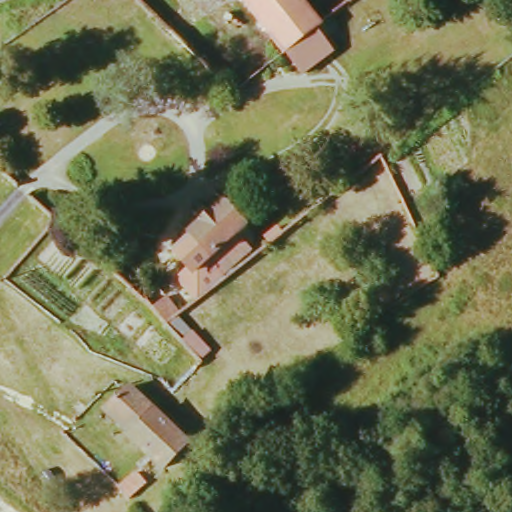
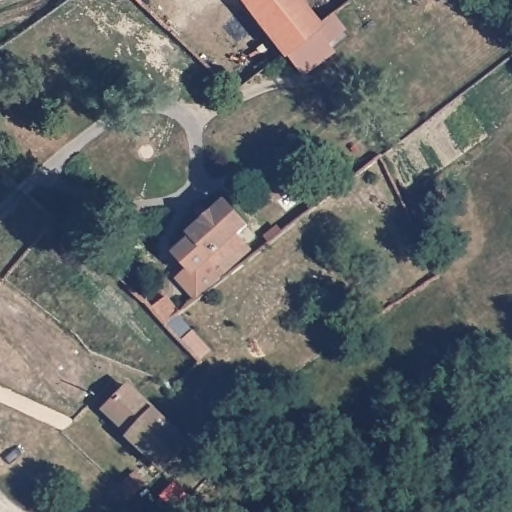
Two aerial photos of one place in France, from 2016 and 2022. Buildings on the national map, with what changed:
unchanged [(291,55),(249,0),(311,0),(328,21),(321,28),(336,51),(306,74),(291,55)]
unchanged [(241,238),(252,251),(216,285),(203,268),(196,273),(176,249),(231,203),(250,227),(241,238)]
unchanged [(174,469),(161,456),(114,410),(137,386),(198,444),(174,469)]
unchanged [(131,488),(149,469),(161,483),(143,501),(131,488)]

